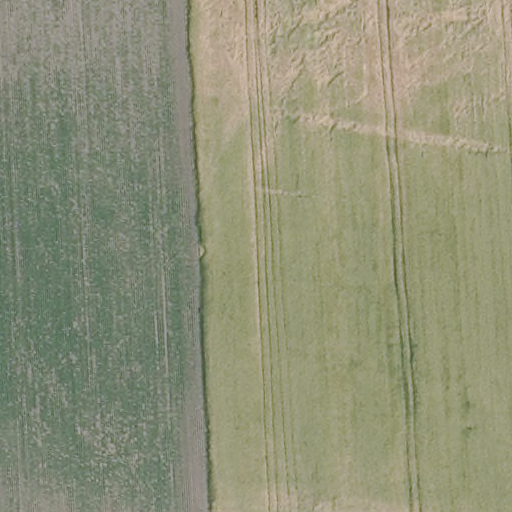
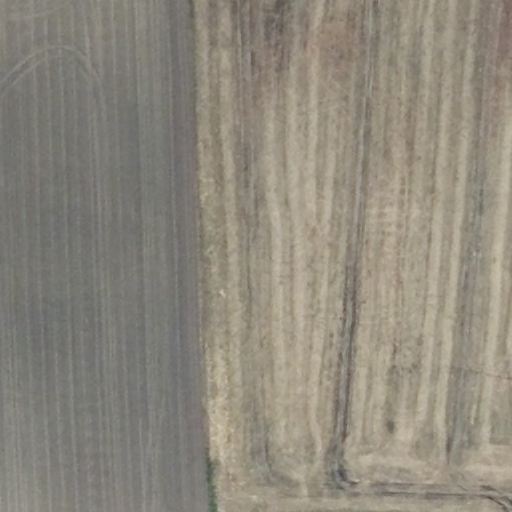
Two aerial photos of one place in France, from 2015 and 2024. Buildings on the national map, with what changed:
[]

